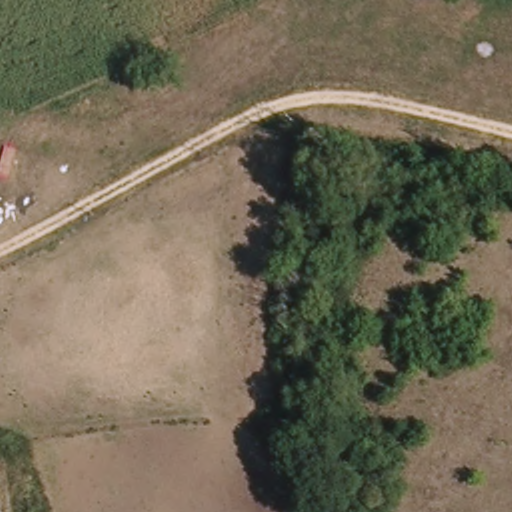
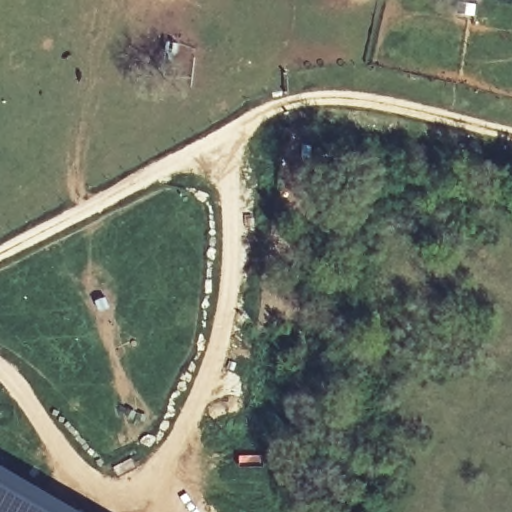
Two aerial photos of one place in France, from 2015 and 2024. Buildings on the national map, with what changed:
new [(89,512),(0,512),(0,466),(3,462),(89,512)]

